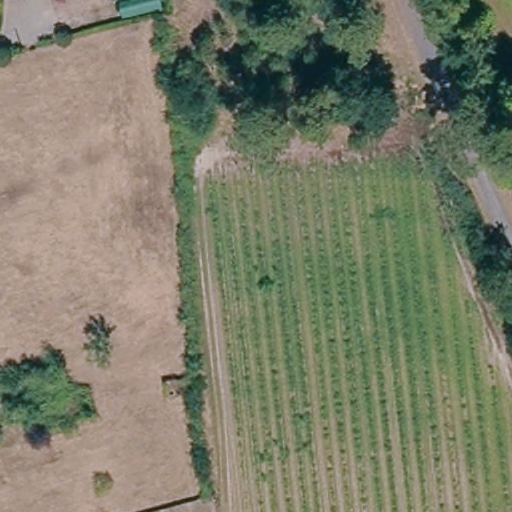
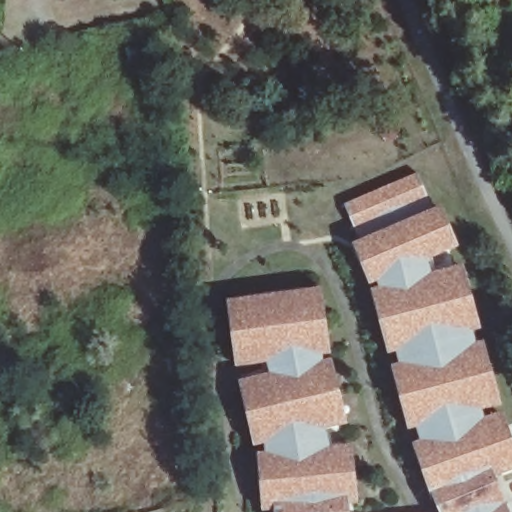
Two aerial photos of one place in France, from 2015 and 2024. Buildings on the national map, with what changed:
new [(354,245),(361,242),(345,208),(417,176),(433,212),(441,208),(458,250),(427,261),(432,277),(462,269),(512,437),(512,471),(495,478),(509,512),(440,512),(354,245)]
new [(346,425),(325,429),(330,450),(351,447),(357,506),(347,507),(348,512),(264,512),(228,304),(319,290),(346,425)]

